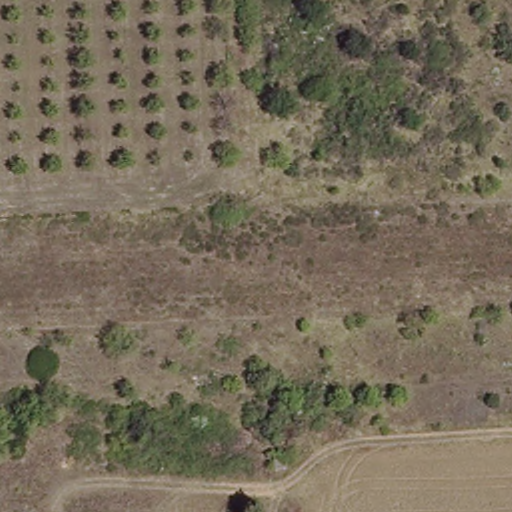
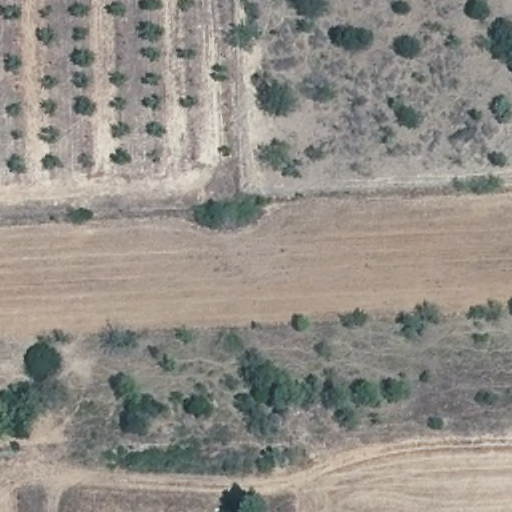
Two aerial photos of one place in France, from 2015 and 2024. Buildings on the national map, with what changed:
unchanged [(286,469),(273,469),(272,454),(285,453),(286,469)]

